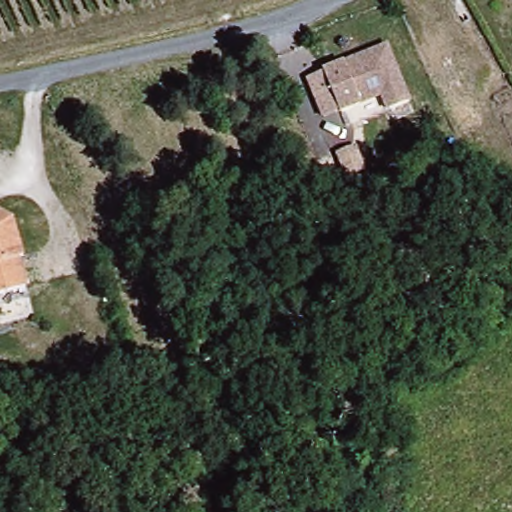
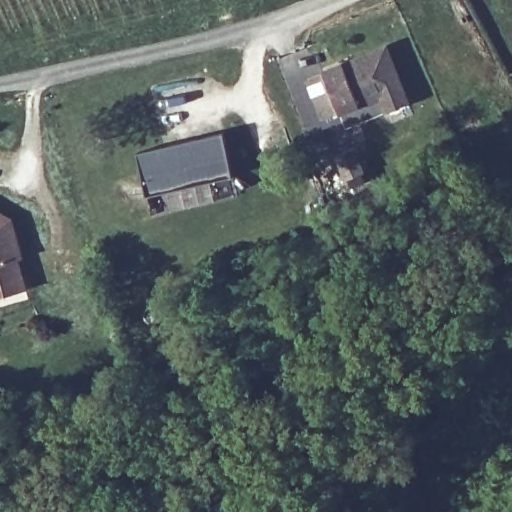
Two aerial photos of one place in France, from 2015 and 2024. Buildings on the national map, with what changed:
unchanged [(305,80),(321,74),(386,50),(408,105),(386,114),(380,98),(337,114),(320,121),(305,80)]
new [(137,154),(225,132),(234,173),(147,195),(137,154)]
unchanged [(353,180),(345,157),(362,150),(373,174),(353,180)]
unchanged [(9,217),(18,250),(15,256),(23,285),(0,292),(0,212),(9,217)]

